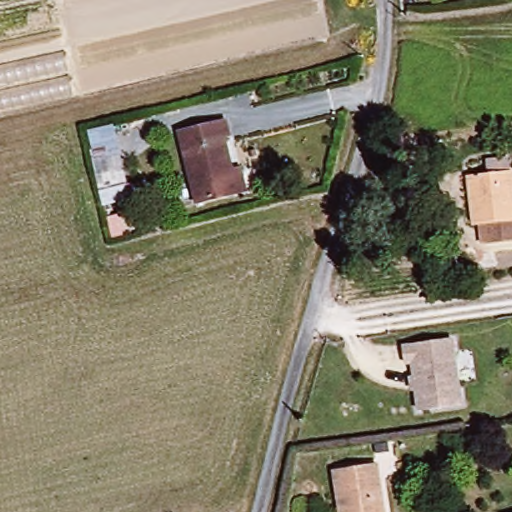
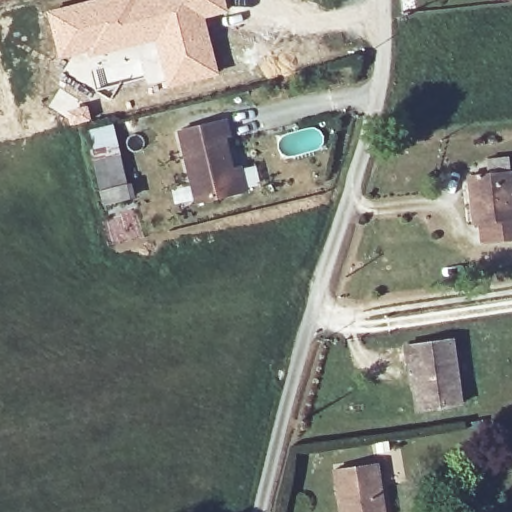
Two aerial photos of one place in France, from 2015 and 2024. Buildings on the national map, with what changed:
new [(87,0),(225,0),(228,11),(205,19),(219,73),(165,86),(153,41),(91,55),(59,59),(46,11),(87,0)]
unchanged [(247,191),(236,194),(197,202),(183,139),(181,127),(227,118),(229,128),(229,129),(231,140),(224,141),(231,169),(242,166),(247,191)]
new [(113,122),(128,181),(98,190),(86,130),(113,122)]
unchanged [(479,219),(473,220),(466,171),(509,165),(512,184),(512,239),(483,244),(479,219)]
unchanged [(455,341),(458,365),(462,405),(419,410),(415,370),(414,363),(408,364),(406,346),(455,341)]
unchanged [(386,512),(337,512),(329,469),(376,460),(386,512)]

